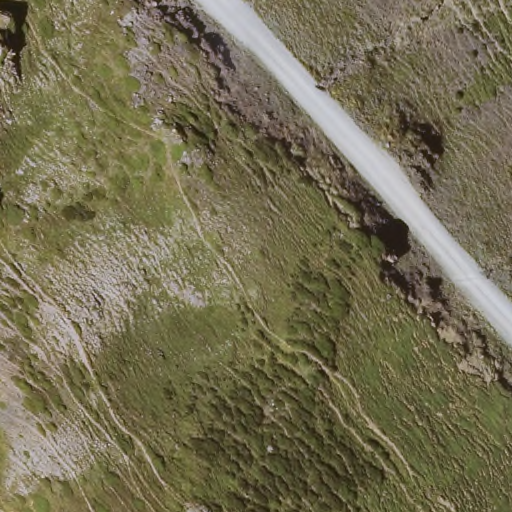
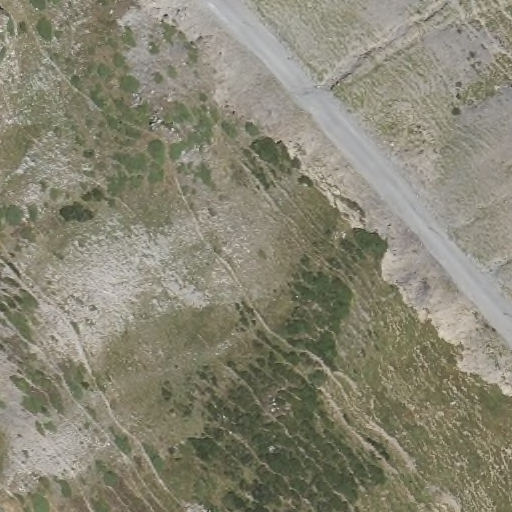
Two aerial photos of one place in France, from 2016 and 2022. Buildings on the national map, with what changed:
[]

